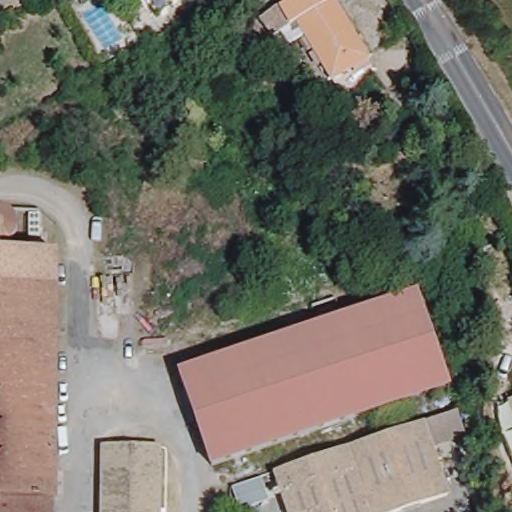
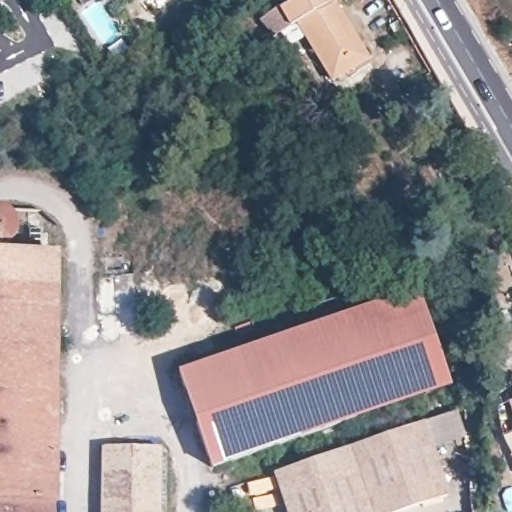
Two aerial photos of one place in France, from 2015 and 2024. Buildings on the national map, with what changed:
unchanged [(285,30),(279,34),(269,16),(296,0),(342,0),(376,56),(342,77),(315,33),(295,45),(285,30)]
unchanged [(5,202),(10,203),(14,205),(17,207),(20,211),(21,215),(22,222),(20,227),(19,231),(15,235),(11,238),(4,240),(0,240),(0,203),(1,202),(5,202)]
unchanged [(23,226),(53,226),(52,248),(60,249),(58,500),(55,499),(55,512),(0,512),(0,248),(22,248),(23,226)]
unchanged [(414,288),(447,384),(208,468),(174,372),(414,288)]
unchanged [(505,398),(512,395),(512,415),(505,398)]
unchanged [(472,432),(465,434),(465,407),(472,405),(472,432)]
unchanged [(448,440),(442,441),(460,490),(400,512),(296,512),(281,469),(434,416),(440,414),(448,440)]
unchanged [(165,505),(171,505),(171,512),(106,512),(107,443),(166,443),(165,505)]

